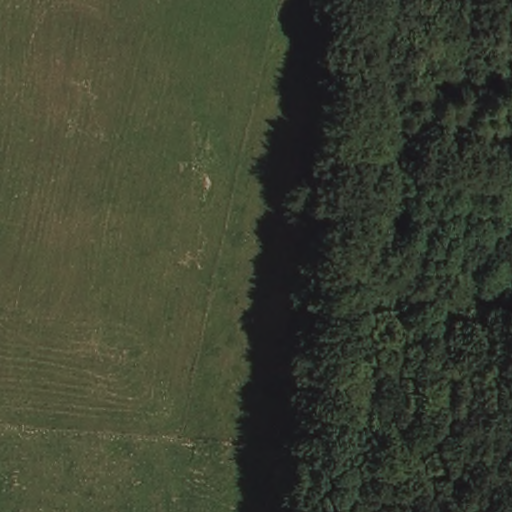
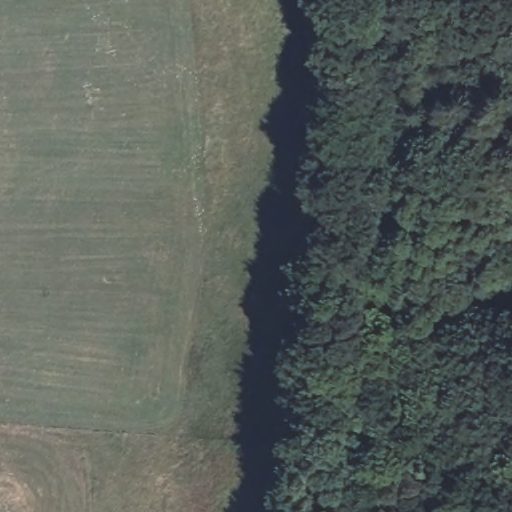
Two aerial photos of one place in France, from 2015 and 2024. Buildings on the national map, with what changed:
[]

